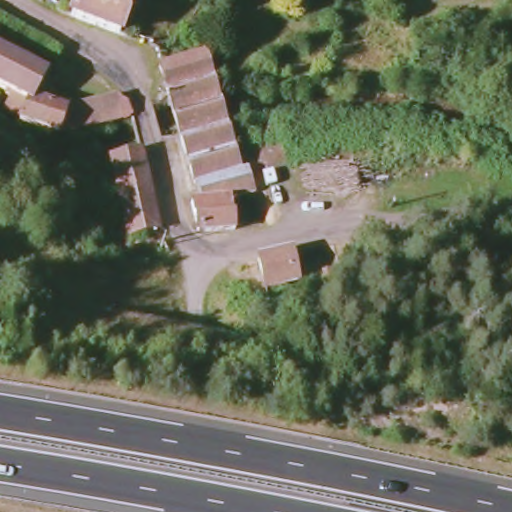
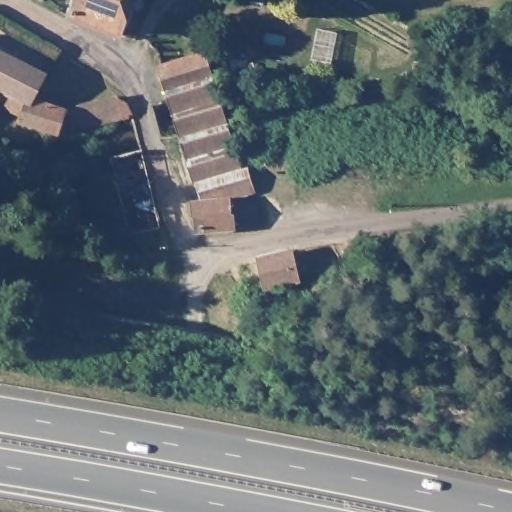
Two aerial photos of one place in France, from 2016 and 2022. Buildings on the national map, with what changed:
unchanged [(130,0),(118,35),(70,17),(76,0),(130,0)]
unchanged [(159,66),(159,65),(204,51),(213,79),(167,94),(159,66)]
unchanged [(193,183),(180,136),(167,94),(213,79),(214,81),(225,119),(241,169),(196,183),(193,183)]
unchanged [(35,96),(71,109),(123,96),(129,100),(132,103),(134,106),(137,114),(64,133),(22,120),(25,115),(35,96)]
unchanged [(124,216),(114,173),(110,158),(142,149),(160,227),(146,230),(137,232),(130,234),(128,234),(124,216)]
unchanged [(241,169),(247,168),(253,190),(227,199),(200,200),(196,183),(241,169)]
unchanged [(200,200),(227,199),(234,227),(199,230),(191,202),(200,200)]
unchanged [(258,258),(288,252),(294,281),(265,288),(258,258)]

